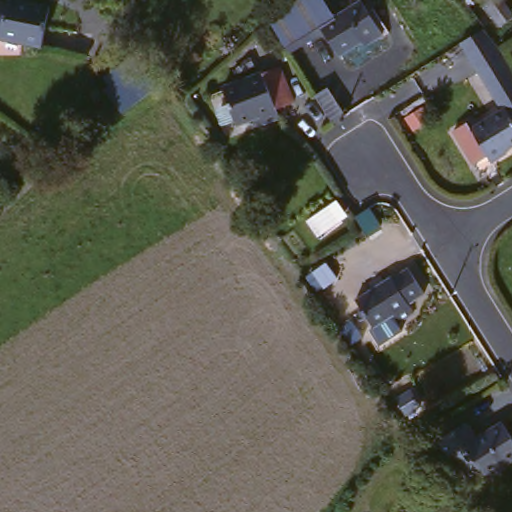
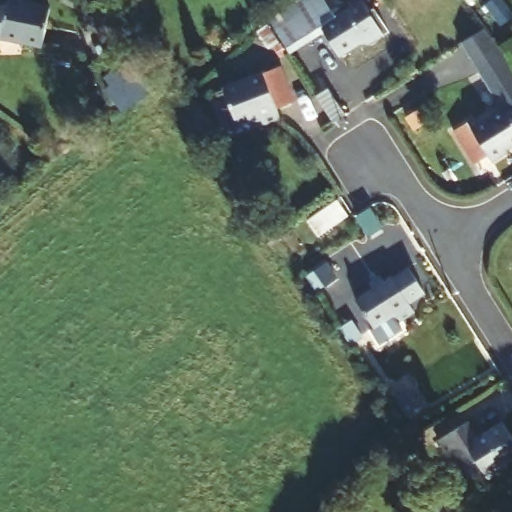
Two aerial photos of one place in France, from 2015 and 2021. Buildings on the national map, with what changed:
unchanged [(311,0),(325,0),(335,18),(360,4),(377,32),(338,54),(323,30),(289,48),(274,23),(311,0)]
unchanged [(452,11),(448,7),(441,0),(463,0),(452,11)]
unchanged [(53,16),(43,51),(7,40),(0,42),(0,14),(6,12),(9,3),(53,16)]
unchanged [(501,26),(493,31),(481,14),(490,9),(501,26)]
unchanged [(456,47),(481,32),(488,43),(499,61),(512,82),(512,138),(503,143),(508,151),(489,161),(483,151),(469,158),(449,126),(463,118),(470,130),(497,115),(456,47)]
unchanged [(106,61),(140,47),(153,85),(125,107),(119,112),(102,72),(110,69),(106,61)]
unchanged [(281,72),(291,107),(272,112),(274,121),(256,127),(253,117),(231,124),(220,89),(281,72)]
unchanged [(313,100),(326,93),(341,119),(341,120),(339,121),(329,127),(313,100)]
unchanged [(361,209),(374,228),(361,236),(348,216),(361,209)]
unchanged [(318,262),(331,283),(318,292),(304,271),(318,262)]
unchanged [(406,274),(421,304),(406,311),(411,321),(394,330),(389,320),(366,331),(351,302),(406,274)]
unchanged [(512,443),(512,464),(491,479),(486,474),(473,483),(461,467),(453,472),(436,449),(466,429),(476,442),(499,426),(512,443)]

